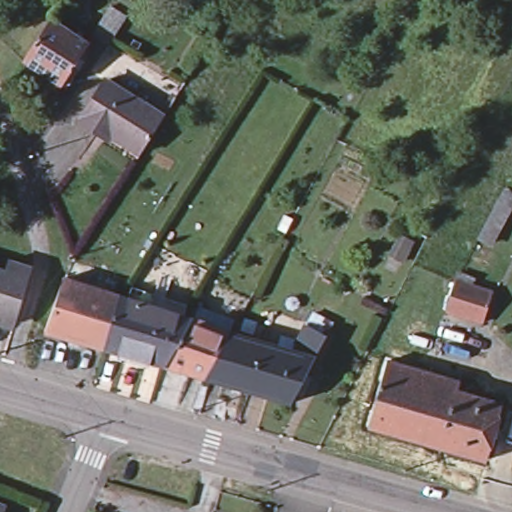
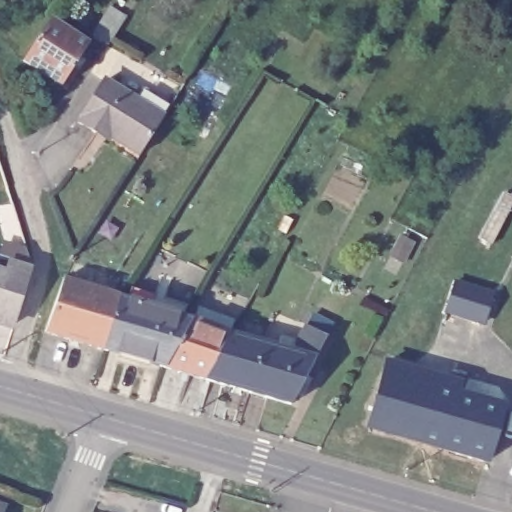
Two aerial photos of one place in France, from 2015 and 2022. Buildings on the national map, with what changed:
unchanged [(77,4),(71,0),(80,0),(77,4)]
unchanged [(109,6),(126,16),(108,43),(92,32),(109,6)]
unchanged [(50,19),(88,43),(62,84),(23,60),(50,19)]
unchanged [(100,129),(96,134),(78,122),(104,81),(126,95),(103,131),(100,129)]
unchanged [(126,95),(162,118),(140,154),(103,131),(126,95)]
unchanged [(7,283),(12,269),(19,272),(25,274),(29,275),(11,335),(0,331),(0,281),(7,283)]
unchanged [(488,284),(479,328),(441,320),(454,271),(488,284)]
unchanged [(55,305),(63,279),(83,285),(117,295),(101,346),(67,336),(46,330),(55,305)]
unchanged [(117,295),(190,317),(162,364),(101,346),(117,295)]
unchanged [(190,317),(232,330),(205,377),(162,364),(190,317)]
unchanged [(272,343),(292,349),(306,322),(328,333),(315,357),(291,402),(246,389),(272,343)]
unchanged [(232,330),(272,343),(246,389),(205,377),(232,330)]
unchanged [(368,424),(389,360),(412,367),(382,427),(368,424)]
unchanged [(412,367),(459,380),(460,381),(457,391),(455,390),(439,444),(382,427),(412,367)]
unchanged [(455,390),(457,391),(503,403),(487,457),(439,444),(455,390)]
unchanged [(1,507),(0,510),(0,507),(1,507)]

